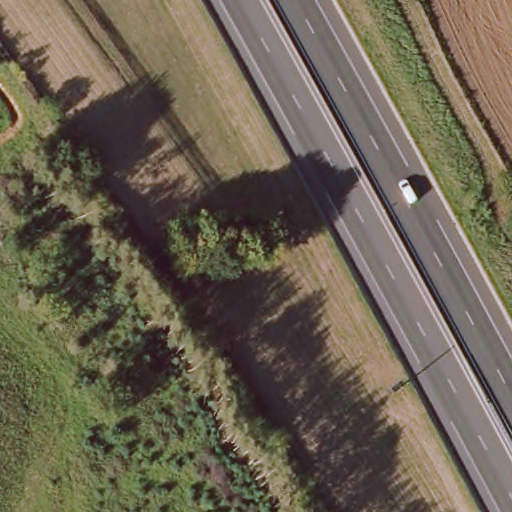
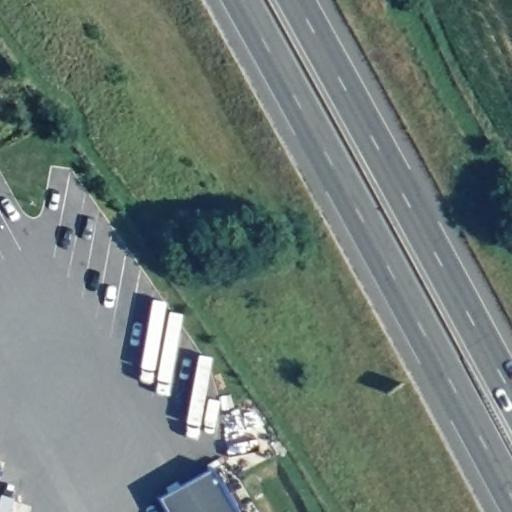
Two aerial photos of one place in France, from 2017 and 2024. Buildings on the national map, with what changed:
new [(163,502),(218,471),(241,512),(169,512),(163,502)]
new [(13,500),(10,512),(0,512),(0,500),(1,497),(13,500)]

